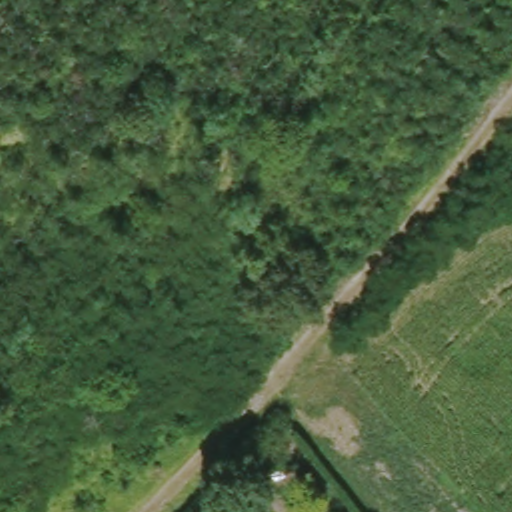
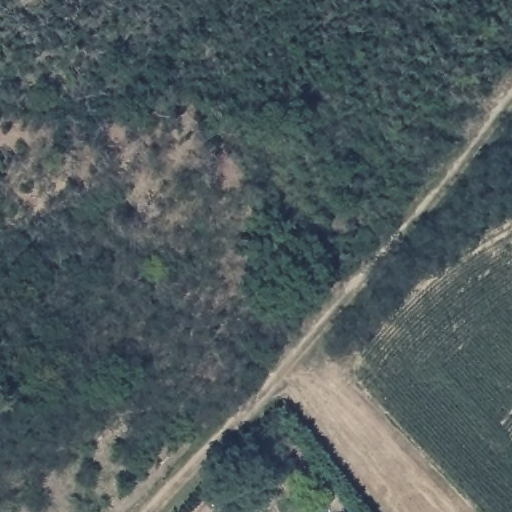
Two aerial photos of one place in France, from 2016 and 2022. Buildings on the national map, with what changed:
unchanged [(263,501),(272,512),(247,512),(263,501)]

